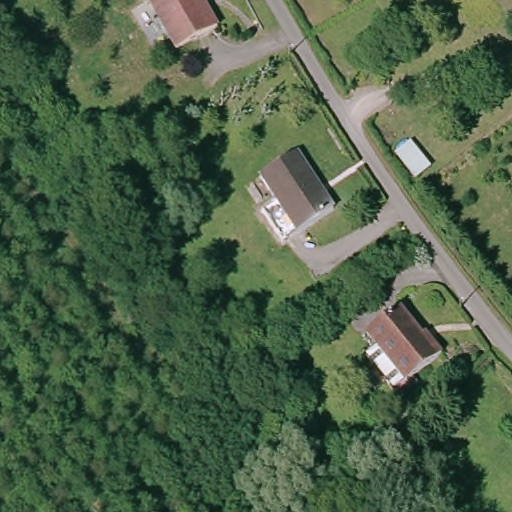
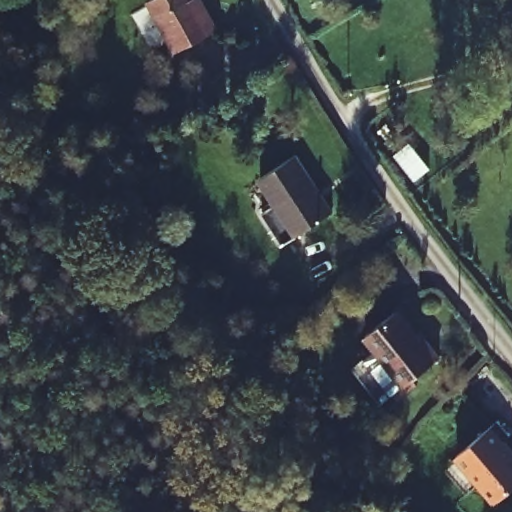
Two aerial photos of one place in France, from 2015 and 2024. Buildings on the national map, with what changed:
unchanged [(200,0),(216,25),(175,53),(144,2),(147,0),(200,0)]
unchanged [(294,154),(329,211),(280,248),(260,216),(274,203),(261,179),(294,154)]
unchanged [(393,313),(412,338),(420,332),(437,355),(401,380),(367,332),(393,313)]
new [(512,430),(512,431),(505,437),(512,445),(512,485),(497,498),(458,451),(501,416),(512,430)]

